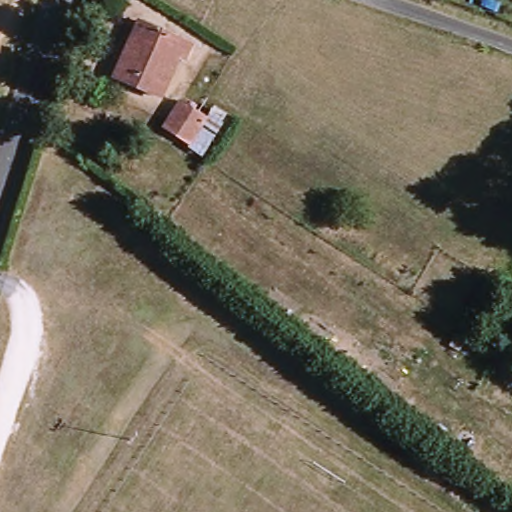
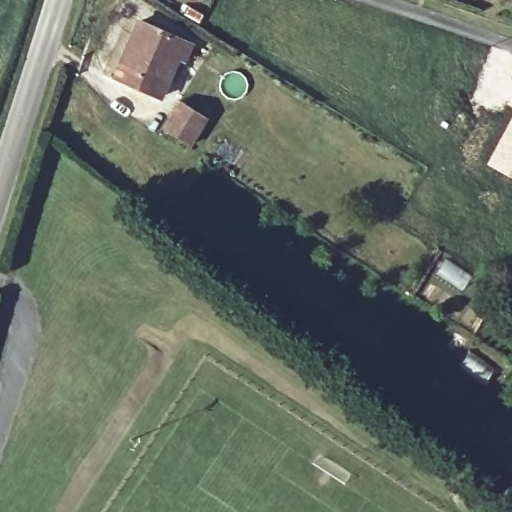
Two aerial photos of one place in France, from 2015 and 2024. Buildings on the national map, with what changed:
unchanged [(190,42),(183,60),(176,57),(158,97),(113,78),(137,20),(190,42)]
unchanged [(173,131),(188,106),(207,117),(215,122),(199,147),(192,143),(173,131)]
new [(512,111),(512,179),(483,163),(512,111)]

